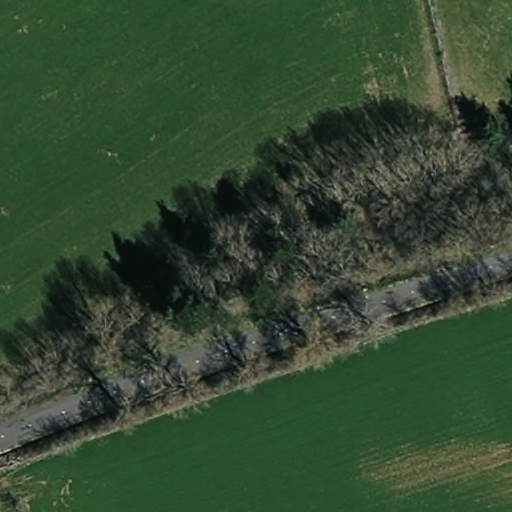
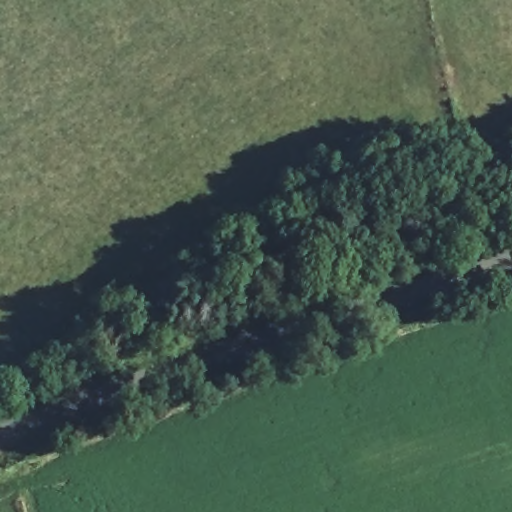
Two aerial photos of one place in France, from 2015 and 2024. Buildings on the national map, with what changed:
[]

